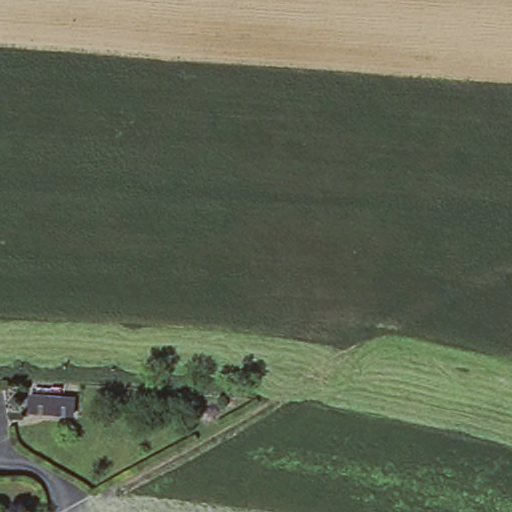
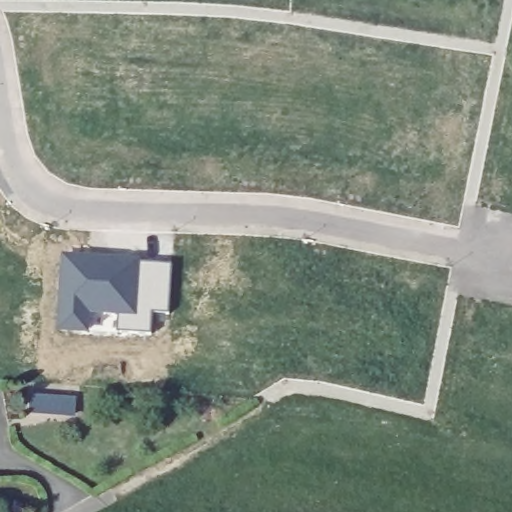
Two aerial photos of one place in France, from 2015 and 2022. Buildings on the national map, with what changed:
new [(140,256),(142,264),(170,264),(170,310),(153,311),(153,332),(117,330),(117,315),(90,311),(88,331),(57,329),(60,252),(140,256)]
unchanged [(75,398),(74,414),(30,411),(32,394),(75,398)]

